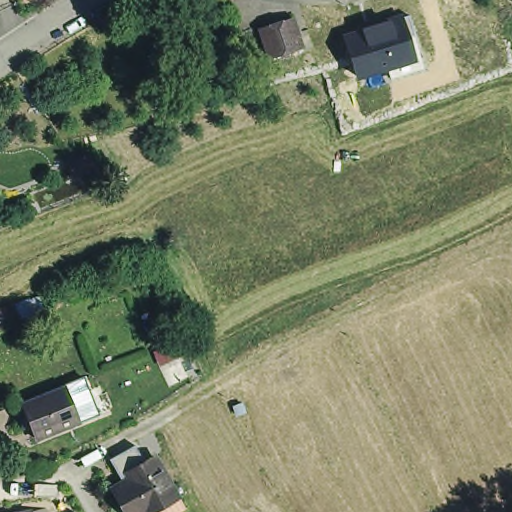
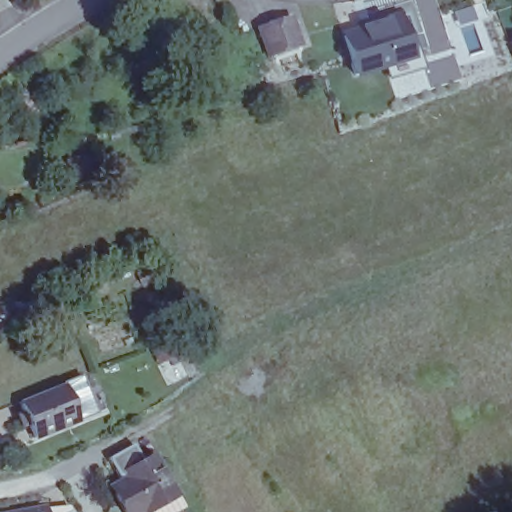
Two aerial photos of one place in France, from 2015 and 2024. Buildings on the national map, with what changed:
unchanged [(271,22),(290,16),(295,30),(300,44),(267,56),(257,27),(271,22)]
unchanged [(413,36),(423,69),(387,79),(385,70),(352,79),(338,32),(407,16),(413,36)]
unchanged [(0,329),(0,308),(11,304),(18,323),(0,329)]
unchanged [(153,365),(147,348),(174,334),(183,355),(153,365)]
unchanged [(20,402),(46,391),(63,385),(64,385),(77,421),(34,438),(20,402)]
unchanged [(127,484),(124,478),(154,461),(175,497),(183,512),(182,512),(123,512),(112,492),(127,484)]
unchanged [(74,512),(68,512),(72,510),(74,512)]

